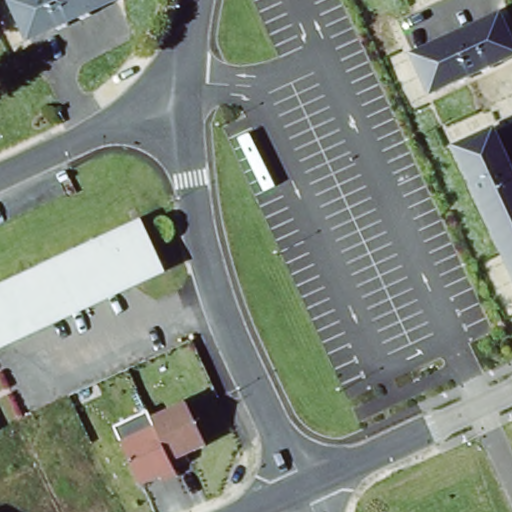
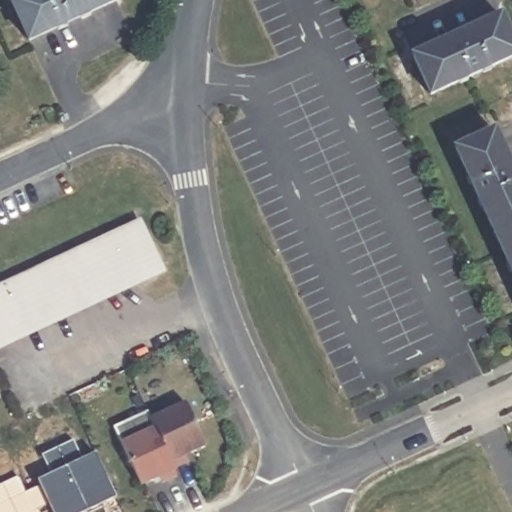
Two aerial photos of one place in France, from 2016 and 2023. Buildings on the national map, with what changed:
unchanged [(20,0),(21,0),(122,0),(123,1),(37,39),(20,0)]
unchanged [(417,61),(505,21),(512,38),(512,63),(434,99),(417,61)]
unchanged [(497,131),(512,163),(512,264),(459,149),(497,131)]
unchanged [(149,224),(169,264),(2,344),(0,340),(0,294),(121,236),(149,224)]
unchanged [(154,425),(151,417),(186,400),(206,445),(172,462),(175,469),(140,485),(120,440),(154,425)]
new [(42,456),(73,441),(82,460),(96,454),(118,500),(105,506),(107,512),(52,512),(37,482),(51,475),(42,456)]

